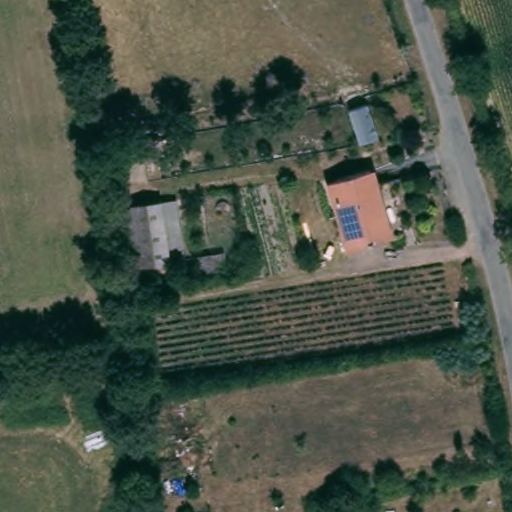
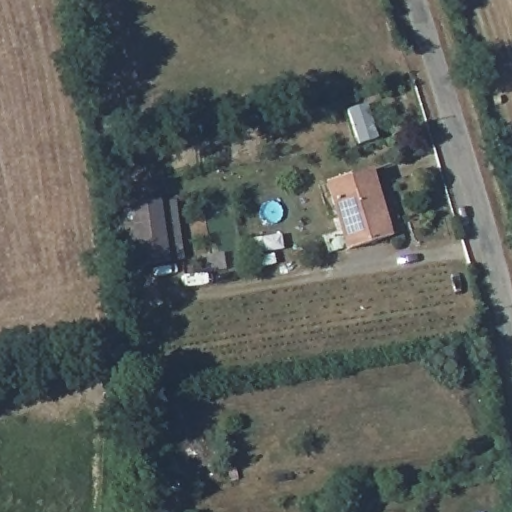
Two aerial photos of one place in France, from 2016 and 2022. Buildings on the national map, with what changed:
unchanged [(391,235),(348,246),(327,180),(370,166),(391,235)]
unchanged [(179,258),(149,262),(144,226),(142,214),(132,217),(130,206),(171,199),(174,219),(179,258)]
unchanged [(149,262),(126,265),(121,231),(118,209),(130,206),(132,217),(142,214),(144,226),(149,262)]

